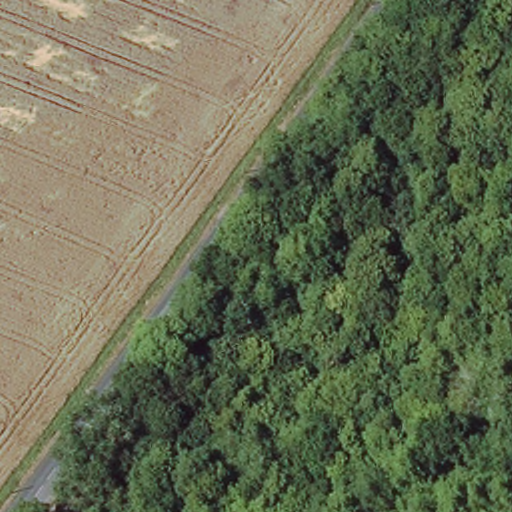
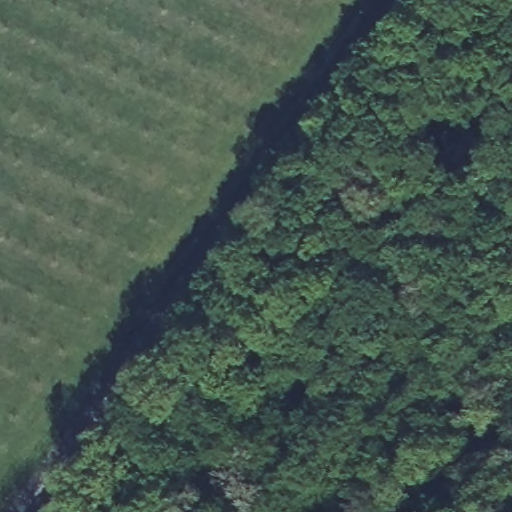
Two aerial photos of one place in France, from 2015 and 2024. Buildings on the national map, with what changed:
[]

